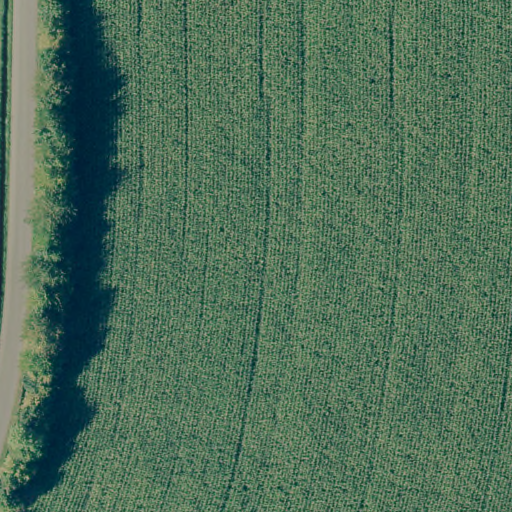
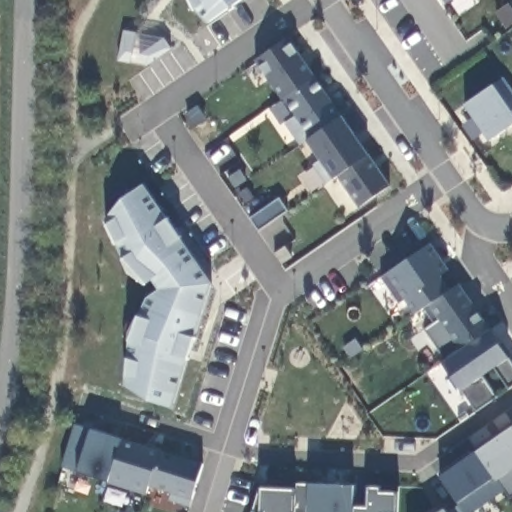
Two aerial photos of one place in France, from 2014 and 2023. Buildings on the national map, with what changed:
new [(194,9),(189,0),(240,0),(207,23),(194,9)]
new [(443,0),(453,0),(447,5),(443,0)]
new [(149,66),(119,61),(124,30),(166,39),(171,49),(149,66)]
new [(367,154),(391,186),(359,207),(338,177),(333,179),(306,142),(311,137),(283,98),(281,99),(254,61),(287,39),(367,154)]
new [(512,91),(512,125),(489,142),(465,105),(493,85),(504,79),(512,91)]
new [(212,282),(173,407),(125,386),(129,332),(147,297),(159,290),(153,279),(146,286),(130,274),(123,258),(106,224),(108,217),(144,184),(212,282)]
new [(279,198),(288,211),(259,232),(250,219),(279,198)]
new [(477,412),(464,388),(461,391),(442,362),(450,357),(426,330),(440,320),(430,305),(415,315),(387,274),(430,244),(449,270),(441,276),(451,290),(459,285),(510,358),(512,361),(512,388),(510,389),(498,365),(486,373),(498,398),(477,412)]
new [(109,482),(78,472),(61,467),(74,423),(91,429),(122,439),(109,482)]
new [(477,452),(512,427),(512,469),(497,480),(477,452)]
new [(159,451),(148,486),(146,492),(109,482),(122,439),(159,451)]
new [(202,465),(190,507),(169,500),(172,494),(148,486),(159,451),(202,465)]
new [(440,477),(477,452),(504,491),(474,512),(464,512),(460,506),(440,477)]
new [(308,512),(252,512),(262,481),(308,485),(308,512)]
new [(352,512),(308,512),(308,485),(354,486),(352,512)]
new [(354,506),(367,507),(368,487),(400,488),(398,512),(353,512),(354,506)]
new [(460,506),(464,512),(450,512),(460,506)]
new [(446,510),(447,512),(442,512),(446,510)]

